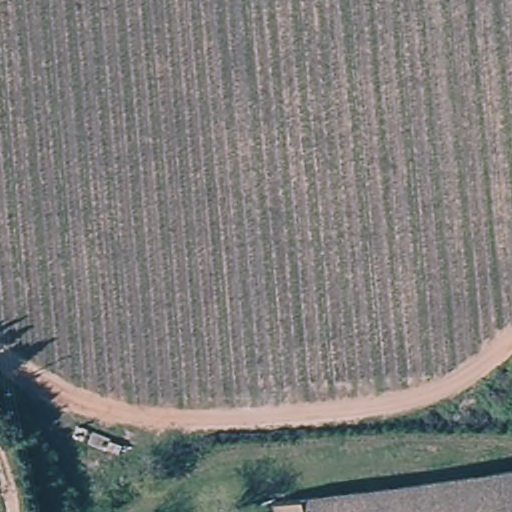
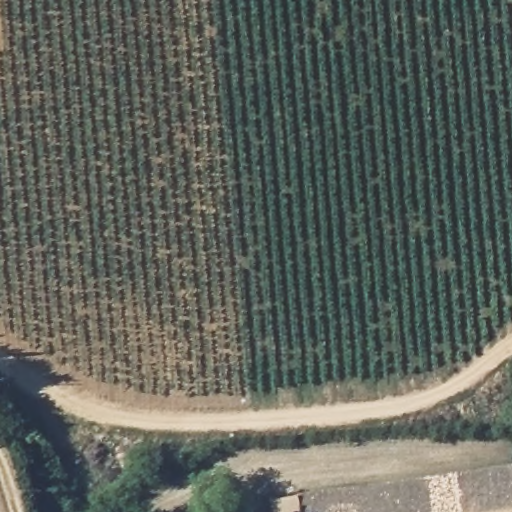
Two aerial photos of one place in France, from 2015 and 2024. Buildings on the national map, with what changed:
unchanged [(512,473),(512,512),(277,512),(277,502),(512,473)]

